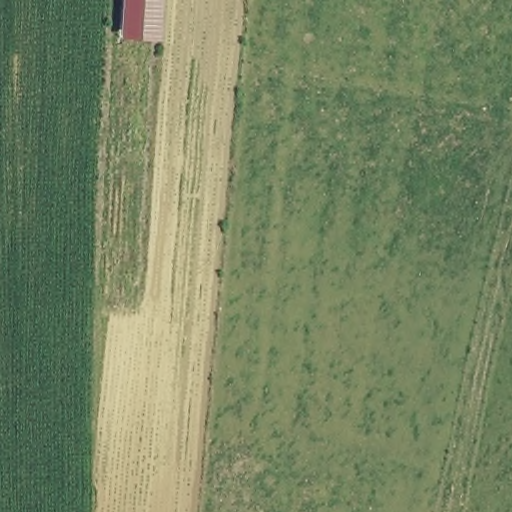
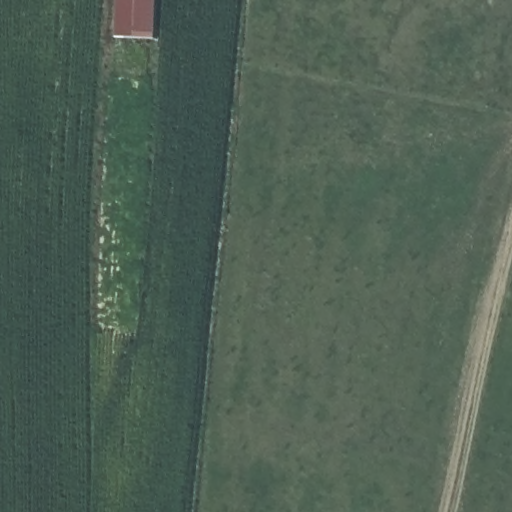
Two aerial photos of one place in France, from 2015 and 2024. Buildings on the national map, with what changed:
unchanged [(123,41),(124,0),(165,0),(163,44),(123,41)]

